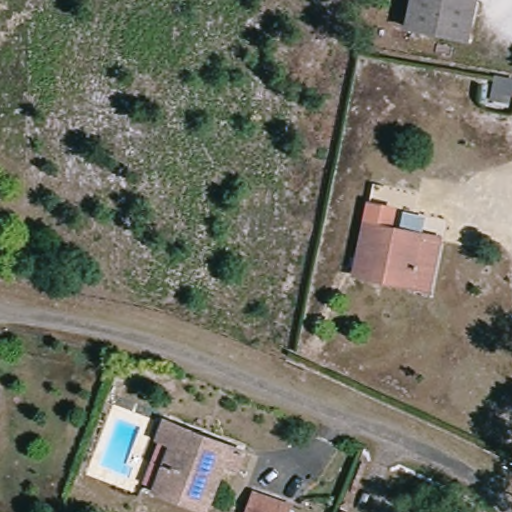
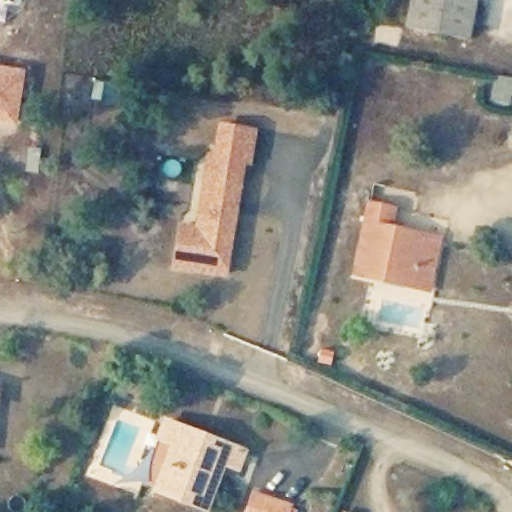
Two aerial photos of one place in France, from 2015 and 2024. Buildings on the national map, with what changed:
unchanged [(471,35),(408,25),(413,0),(477,0),(471,35)]
new [(17,125),(0,122),(0,65),(26,70),(17,125)]
unchanged [(512,78),(512,96),(511,95),(510,103),(490,99),(495,75),(512,78)]
new [(170,270),(179,224),(194,226),(206,154),(212,155),(216,124),(256,130),(251,164),(245,162),(225,277),(170,270)]
unchanged [(365,200),(398,207),(394,225),(361,221),(365,200)]
unchanged [(428,286),(352,273),(361,221),(438,231),(428,286)]
unchanged [(237,470),(222,512),(209,512),(153,493),(177,426),(194,433),(241,450),(258,455),(252,475),(237,470)]
unchanged [(295,512),(243,512),(248,490),(296,506),(295,512)]

